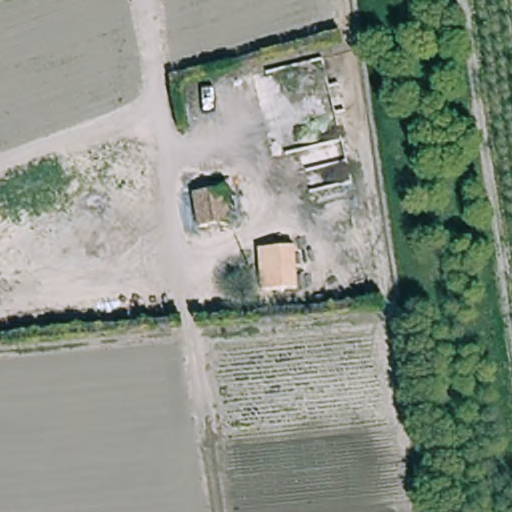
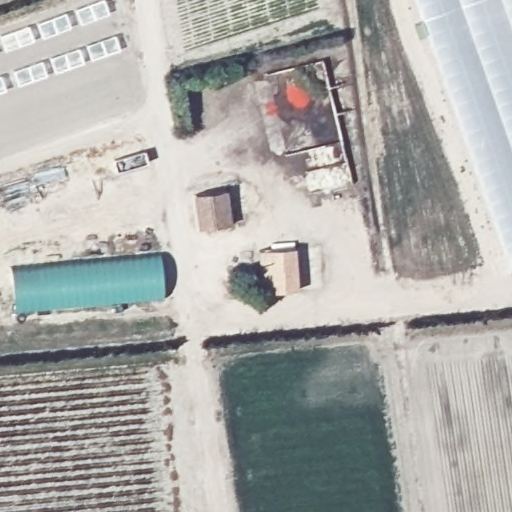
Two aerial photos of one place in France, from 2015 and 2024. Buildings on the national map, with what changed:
new [(511,269),(415,0),(512,0),(512,268),(511,269)]
unchanged [(231,225),(198,230),(192,196),(225,190),(231,225)]
unchanged [(296,290),(260,292),(257,251),(293,248),(296,290)]
new [(10,268),(158,254),(161,297),(13,312),(10,268)]

